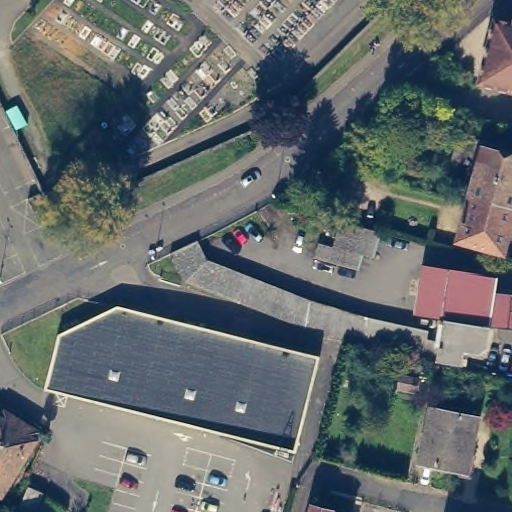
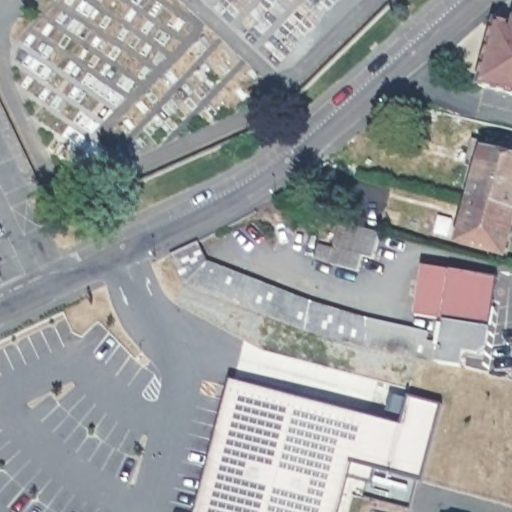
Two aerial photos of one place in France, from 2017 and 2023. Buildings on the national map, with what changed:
unchanged [(512,26),(512,94),(478,85),(495,21),(512,26)]
unchanged [(512,152),(512,205),(470,194),(483,145),(512,152)]
unchanged [(54,221),(40,227),(27,200),(41,194),(54,221)]
unchanged [(512,221),(504,250),(458,238),(470,194),(512,205),(512,221)]
unchanged [(374,254),(363,251),(359,266),(330,259),(342,218),(382,228),(374,254)]
unchanged [(208,255),(312,296),(368,313),(428,327),(427,335),(441,338),(438,358),(407,351),(363,341),(307,325),(185,278),(170,250),(198,236),(208,255)]
unchanged [(438,358),(441,338),(444,320),(445,318),(452,268),(453,263),(498,273),(495,291),(490,324),(489,330),(487,344),(480,349),(465,347),(462,362),(438,358)]
unchanged [(452,268),(445,318),(414,311),(422,264),(452,268)]
demolished [(512,294),(512,327),(490,324),(495,291),(512,294)]
demolished [(297,448),(45,386),(59,330),(118,302),(320,352),(297,448)]
demolished [(418,380),(415,393),(400,390),(402,376),(418,380)]
new [(338,512),(193,512),(228,379),(401,423),(408,396),(440,405),(420,479),(351,461),(338,512)]
demolished [(0,486),(0,409),(12,416),(17,410),(38,423),(35,430),(37,431),(2,487),(0,486)]
demolished [(467,473),(420,463),(432,409),(478,419),(467,473)]
demolished [(335,503),(334,505),(353,510),(353,512),(309,512),(313,497),(335,503)]

